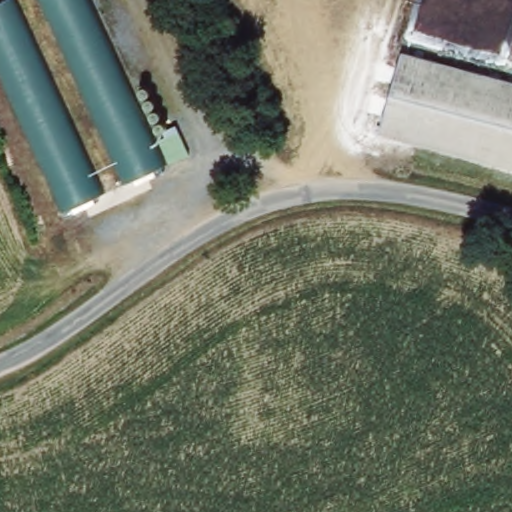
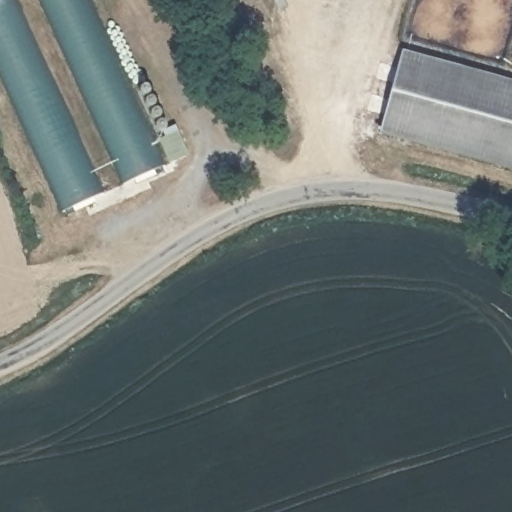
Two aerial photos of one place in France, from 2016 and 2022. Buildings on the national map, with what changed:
unchanged [(18,0),(104,192),(64,209),(0,69),(0,0),(18,0)]
unchanged [(147,82),(165,126),(176,122),(192,156),(123,182),(42,0),(91,0),(130,89),(147,82)]
unchanged [(414,39),(512,75),(512,163),(385,115),(414,39)]

